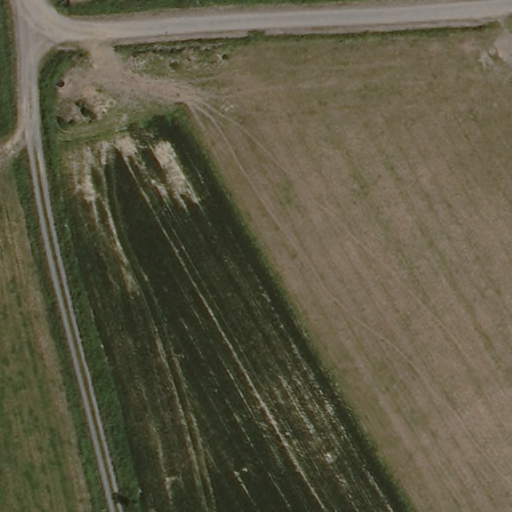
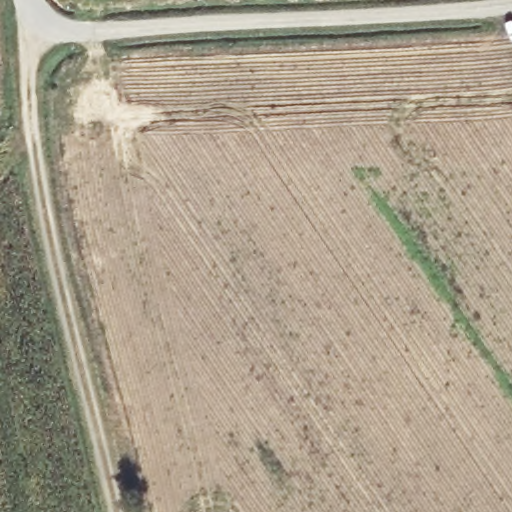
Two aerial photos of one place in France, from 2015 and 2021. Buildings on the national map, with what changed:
[]

